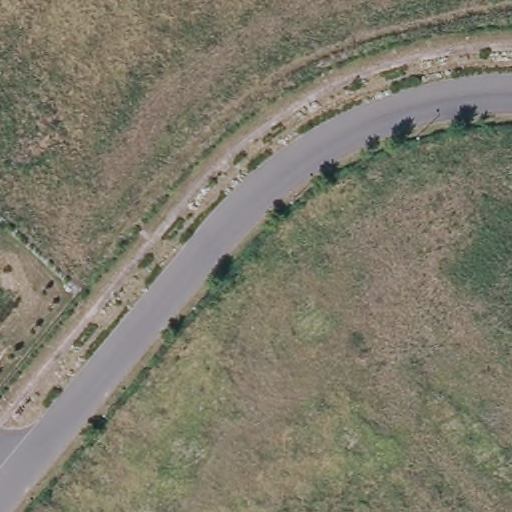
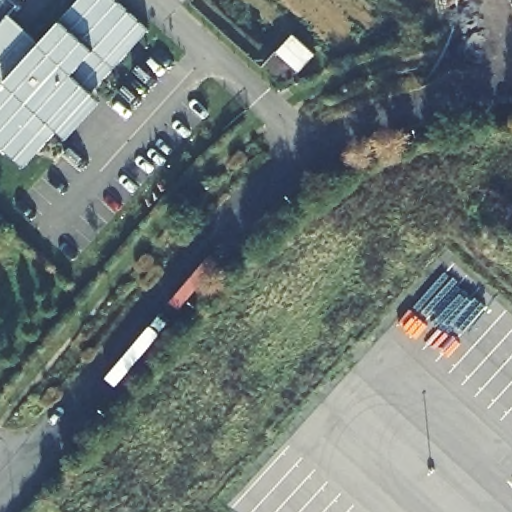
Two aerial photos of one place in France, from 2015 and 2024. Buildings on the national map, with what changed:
new [(20,1),(0,23),(0,0),(19,0),(20,1)]
new [(15,48),(25,57),(59,21),(78,0),(116,0),(148,29),(90,89),(101,100),(66,137),(55,127),(23,166),(0,145),(0,64),(15,48)]

